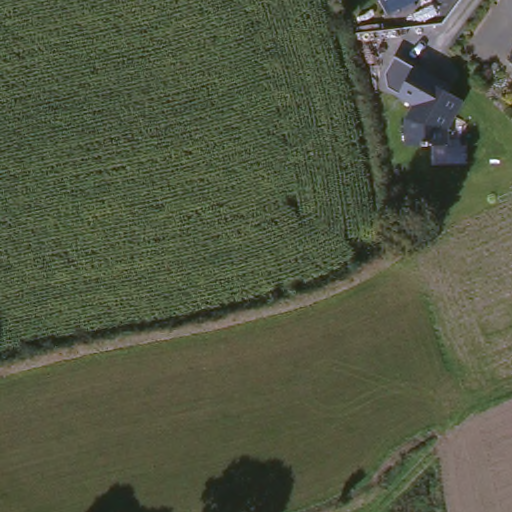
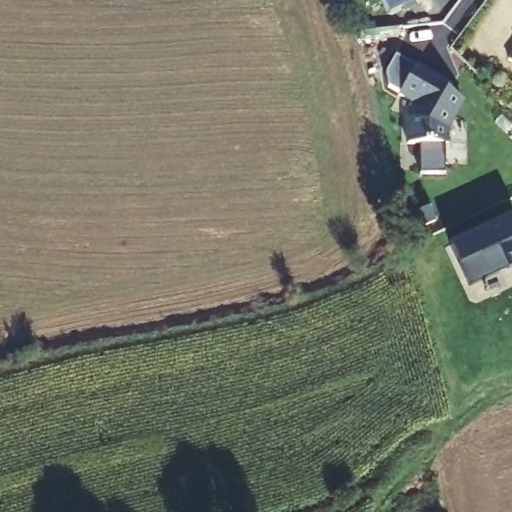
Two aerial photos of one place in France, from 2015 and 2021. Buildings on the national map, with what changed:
unchanged [(505,64),(512,52),(512,67),(505,64)]
unchanged [(456,114),(453,111),(448,120),(449,140),(411,141),(411,116),(420,102),(403,92),(420,64),(436,74),(433,79),(465,99),(456,114)]
new [(503,212),(512,230),(512,240),(500,245),(508,261),(461,283),(441,242),(503,212)]
new [(512,240),(512,270),(508,261),(500,245),(512,240)]

